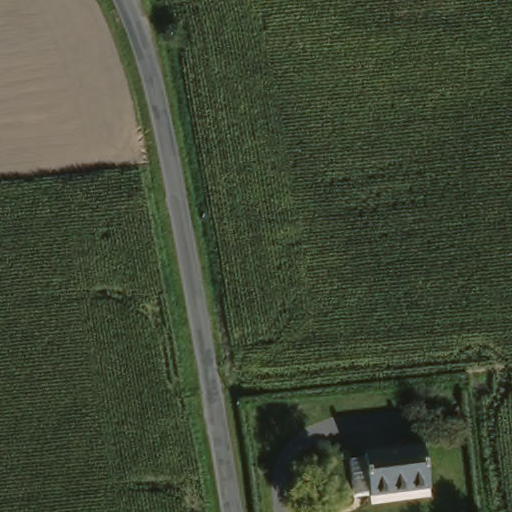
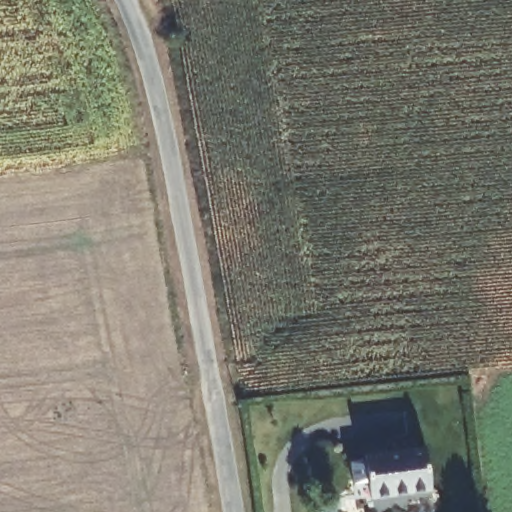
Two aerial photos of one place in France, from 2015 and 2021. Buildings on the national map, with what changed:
unchanged [(366,458),(384,455),(383,448),(440,440),(445,481),(389,491),(389,488),(372,492),(366,458)]

